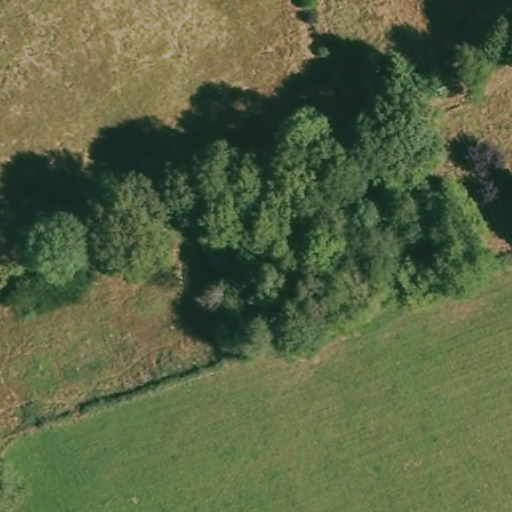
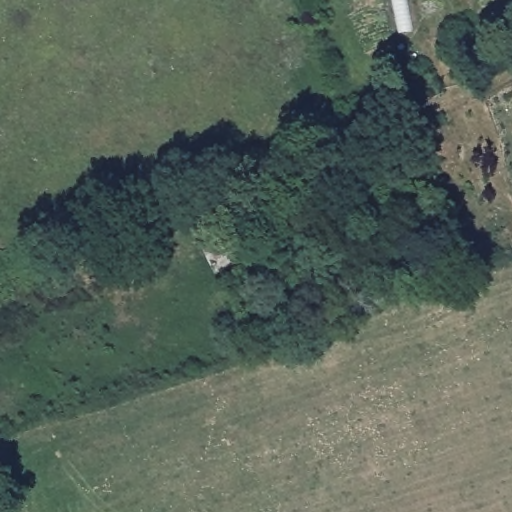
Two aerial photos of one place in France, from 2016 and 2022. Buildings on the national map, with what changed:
unchanged [(205,204),(240,268),(217,280),(184,216),(205,204)]

